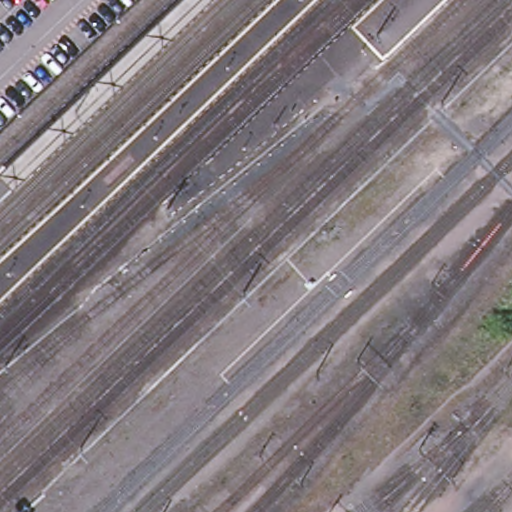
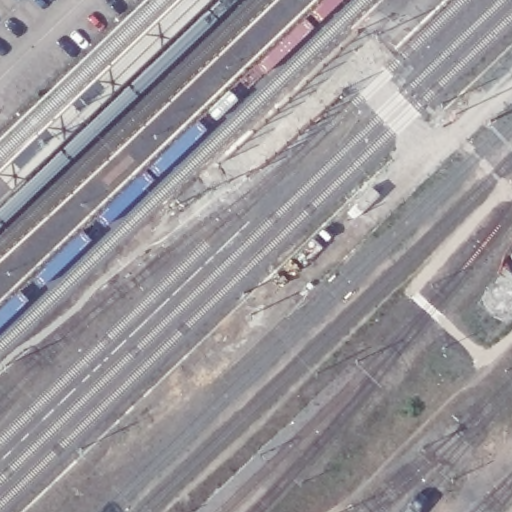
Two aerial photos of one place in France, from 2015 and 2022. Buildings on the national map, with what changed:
unchanged [(13,191),(0,176),(0,173),(179,0),(214,0),(13,191)]

